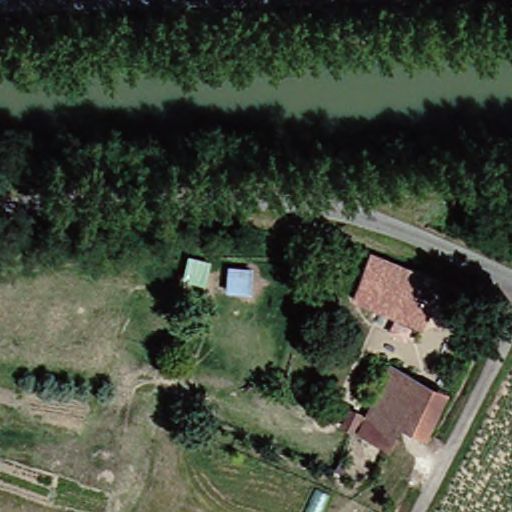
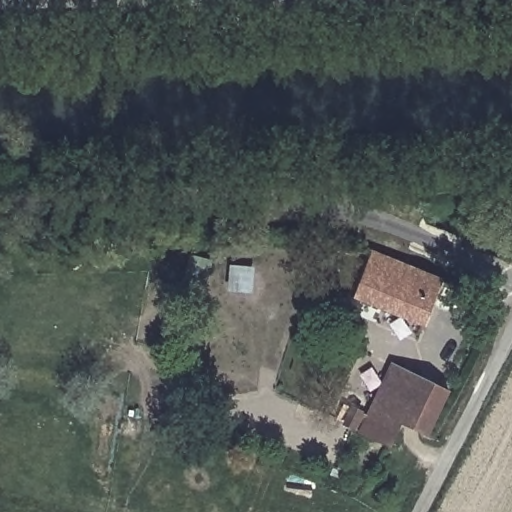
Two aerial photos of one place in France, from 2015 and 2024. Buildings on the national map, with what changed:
unchanged [(348,292),(365,251),(436,281),(417,320),(348,292)]
unchanged [(412,379),(388,423),(376,444),(331,421),(336,413),(325,407),(329,400),(359,415),(386,366),(412,379)]
unchanged [(438,393),(416,437),(388,423),(412,379),(438,393)]

